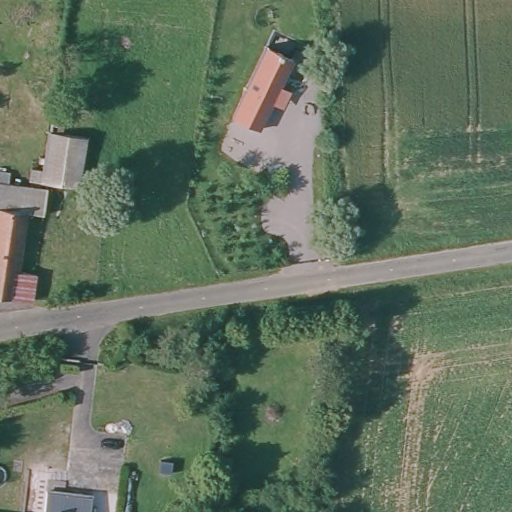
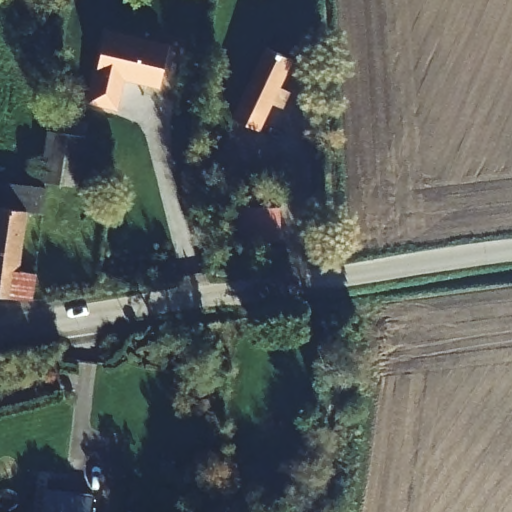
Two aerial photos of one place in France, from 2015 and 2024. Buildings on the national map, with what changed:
new [(90,104),(107,29),(170,44),(160,88),(125,80),(118,110),(90,104)]
unchanged [(283,108),(272,103),(260,130),(232,117),(265,46),(292,59),(282,86),(291,90),(283,108)]
unchanged [(77,130),(72,177),(29,174),(30,160),(42,162),(42,149),(47,125),(77,130)]
unchanged [(0,163),(8,164),(7,176),(42,180),(40,205),(23,205),(17,261),(34,262),(31,290),(0,286),(0,163)]
new [(280,242),(239,241),(240,207),(280,208),(280,242)]
unchanged [(44,489),(88,496),(86,512),(40,512),(44,489)]

